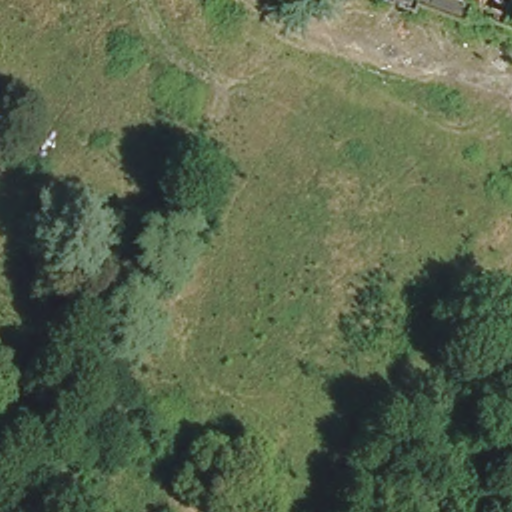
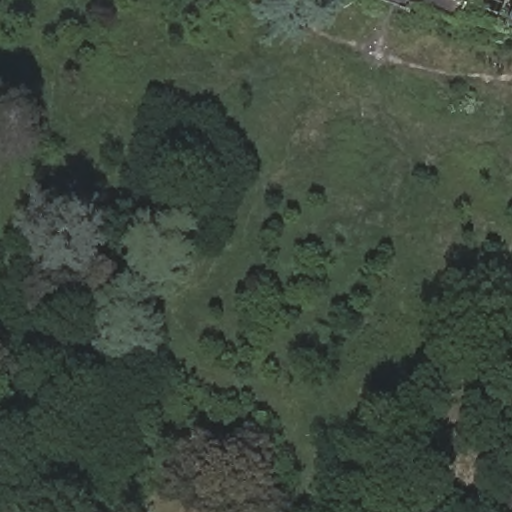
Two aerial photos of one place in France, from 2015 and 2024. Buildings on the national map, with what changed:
unchanged [(462,6),(454,22),(406,6),(401,12),(373,1),(373,0),(512,0),(512,24),(462,6)]

